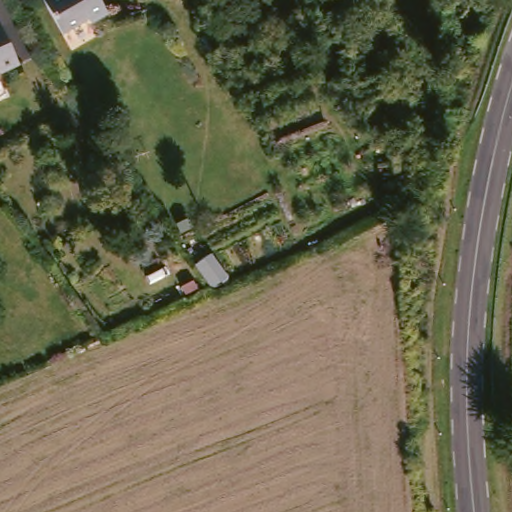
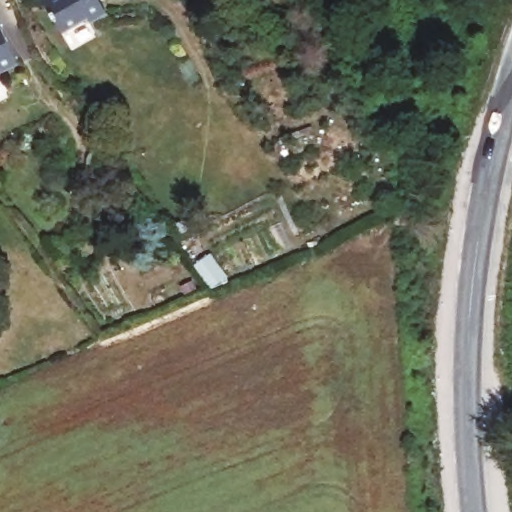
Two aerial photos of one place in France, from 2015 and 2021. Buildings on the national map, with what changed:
unchanged [(84,20),(57,34),(42,0),(95,0),(102,16),(85,24),(84,20)]
unchanged [(17,66),(0,74),(0,28),(17,66)]

